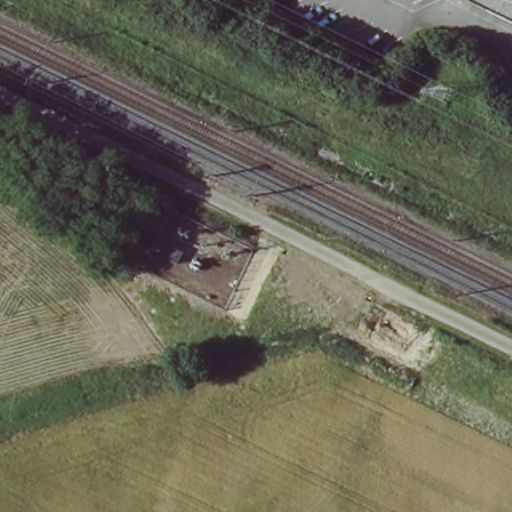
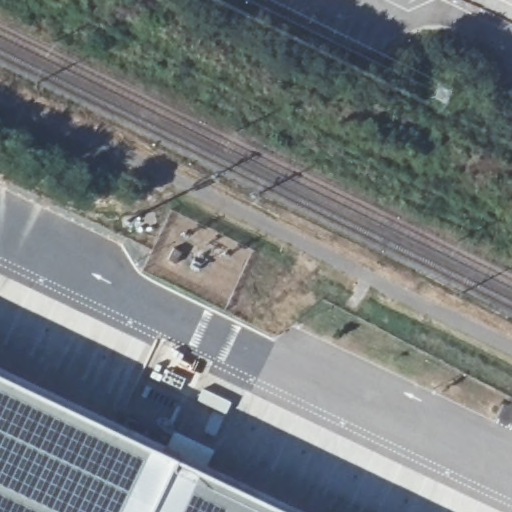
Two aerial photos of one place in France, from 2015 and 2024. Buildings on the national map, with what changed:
new [(0,512),(0,371),(179,455),(151,512),(0,512)]
new [(298,512),(151,512),(179,455),(298,512)]

